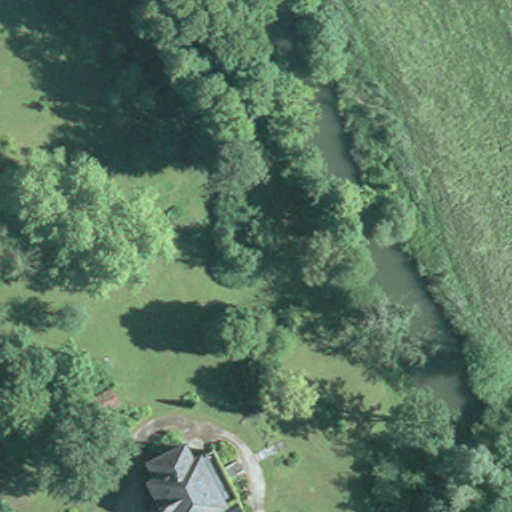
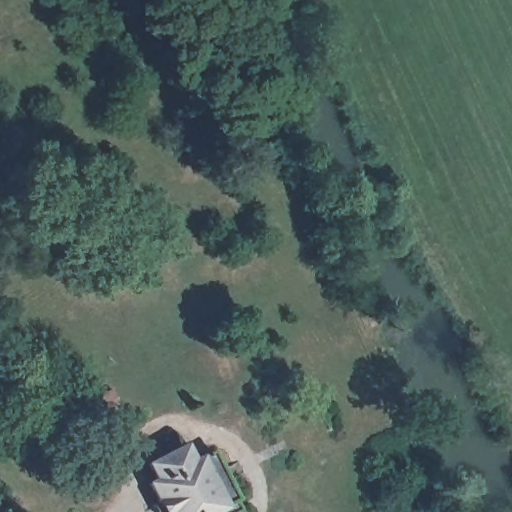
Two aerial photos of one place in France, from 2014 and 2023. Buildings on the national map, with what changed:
unchanged [(148,496),(138,478),(146,474),(137,459),(173,441),(181,457),(203,446),(236,511),(233,512),(156,512),(154,509),(148,512),(141,500),(148,496)]

